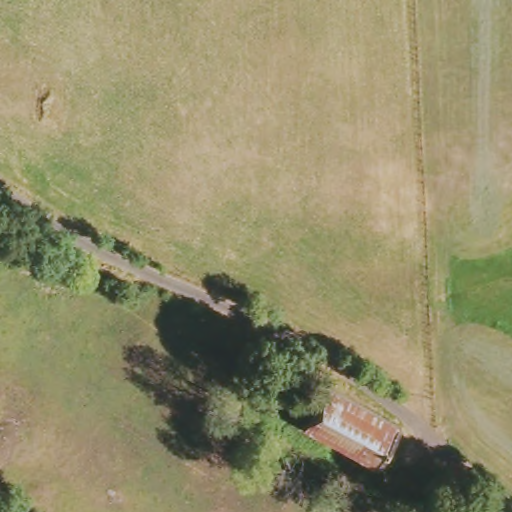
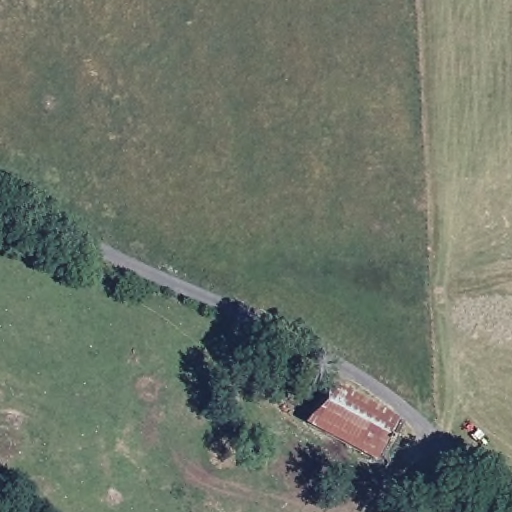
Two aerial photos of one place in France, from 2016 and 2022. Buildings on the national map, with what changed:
unchanged [(392,470),(312,430),(337,386),(413,429),(392,470)]

